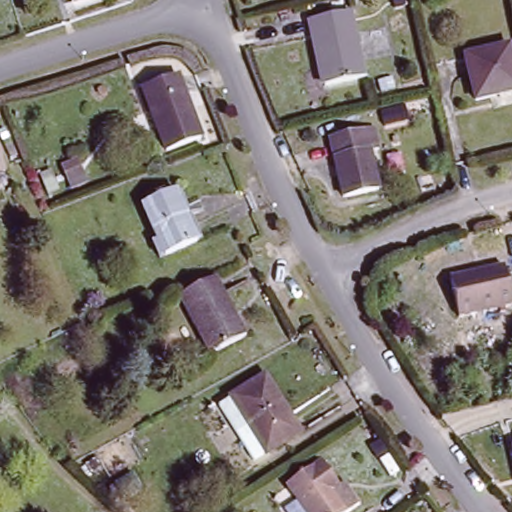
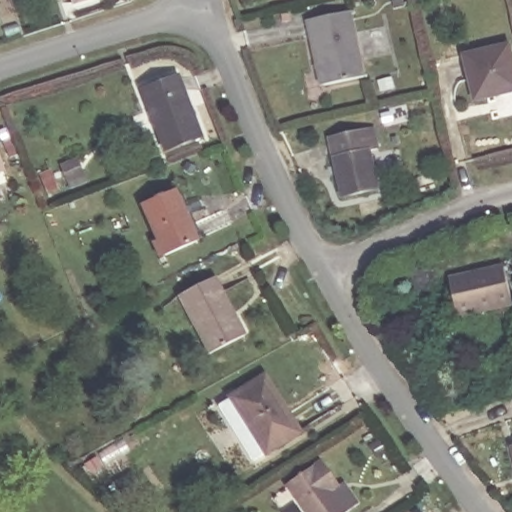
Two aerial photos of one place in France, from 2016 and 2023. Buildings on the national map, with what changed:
unchanged [(355,9),(370,71),(333,80),(330,65),(325,66),(313,19),(355,9)]
unchanged [(512,63),(512,90),(476,97),(467,54),(508,46),(512,63)]
unchanged [(181,75),(207,138),(170,151),(146,86),(181,75)]
unchanged [(371,129),(375,147),(367,149),(376,187),(342,195),(328,140),(371,129)]
unchanged [(8,169),(0,173),(0,149),(8,169)]
unchanged [(178,187),(198,236),(162,251),(142,203),(178,187)]
unchanged [(512,287),(512,304),(462,316),(452,276),(506,263),(512,287)]
unchanged [(219,275),(247,333),(212,350),(184,292),(219,275)]
unchanged [(231,399),(245,392),(276,373),(307,426),(275,445),(263,452),(231,399)]
unchanged [(93,457),(99,466),(90,472),(85,463),(93,457)]
unchanged [(343,482),(335,490),(351,511),(350,512),(310,512),(288,484),(324,457),(343,482)]

